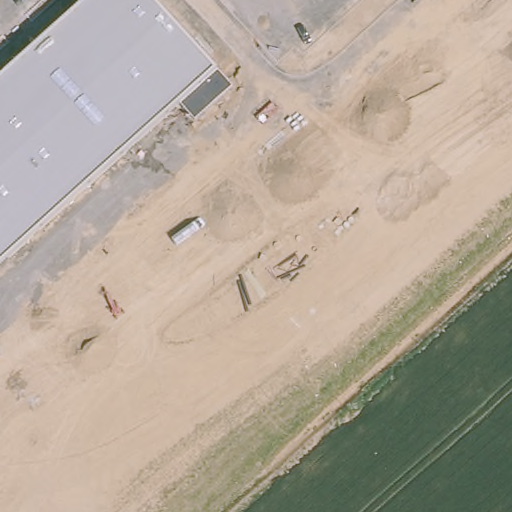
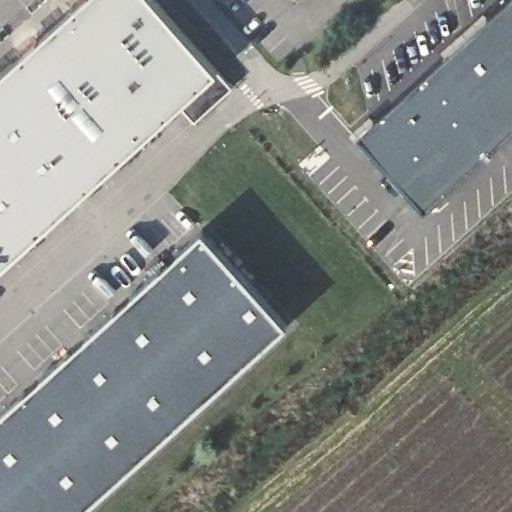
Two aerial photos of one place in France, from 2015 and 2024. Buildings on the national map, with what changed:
unchanged [(217,69),(213,72),(229,89),(192,120),(176,104),(0,263),(0,77),(84,0),(155,0),(217,69)]
new [(512,176),(445,230),(376,135),(512,26),(512,176)]
new [(73,512),(0,512),(0,405),(200,228),(284,320),(73,512)]

